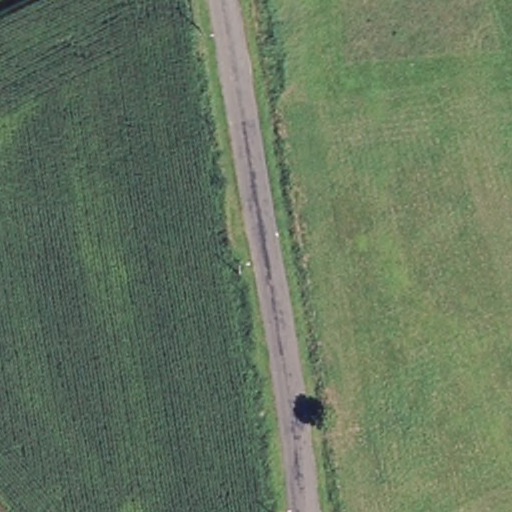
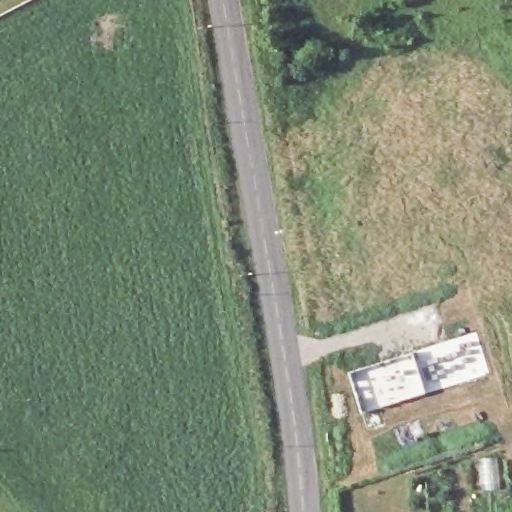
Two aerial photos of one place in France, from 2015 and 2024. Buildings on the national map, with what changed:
new [(362,412),(348,372),(412,352),(475,332),(488,373),(425,393),(362,412)]

